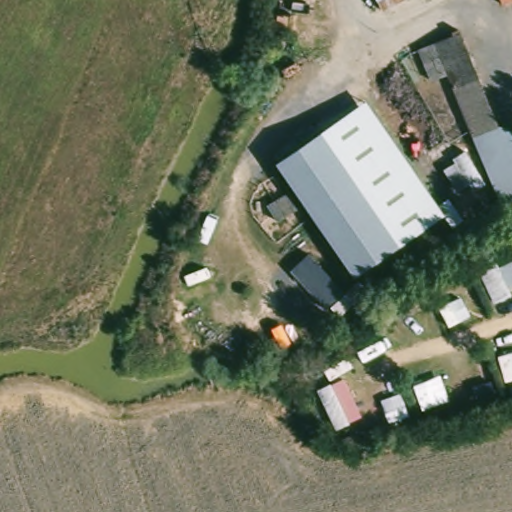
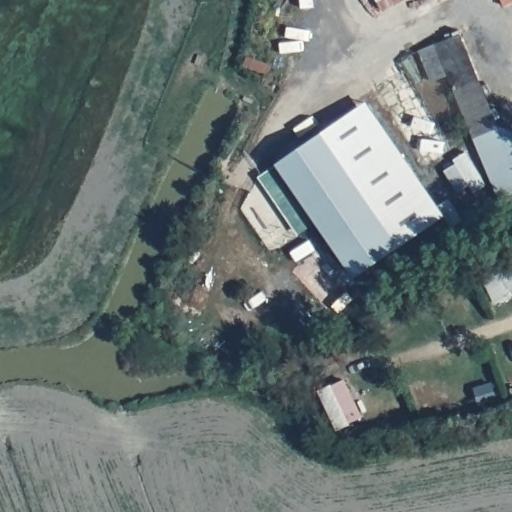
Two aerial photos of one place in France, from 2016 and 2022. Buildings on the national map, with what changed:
unchanged [(381,0),(417,0),(392,16),(381,0)]
unchanged [(501,0),(512,0),(512,10),(507,12),(501,0)]
unchanged [(445,82),(431,90),(417,67),(454,47),(492,124),(471,135),(445,82)]
unchanged [(367,104),(444,215),(396,250),(324,133),(367,104)]
unchanged [(492,124),(512,130),(512,205),(509,206),(471,135),(492,124)]
unchanged [(396,250),(352,278),(279,161),(324,133),(396,250)]
unchanged [(309,253),(355,305),(338,321),(289,270),(309,253)]

